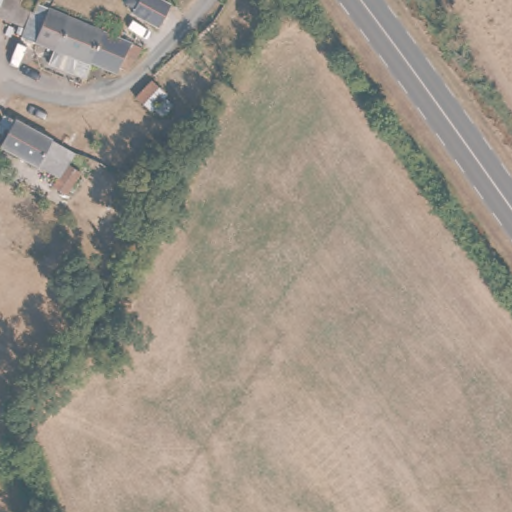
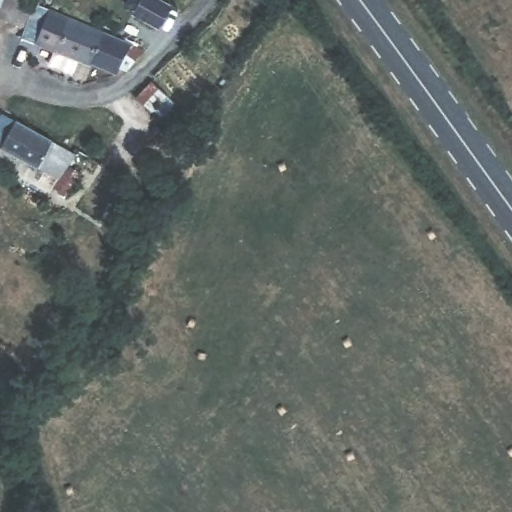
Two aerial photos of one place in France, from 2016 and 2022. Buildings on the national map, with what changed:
unchanged [(11,4),(21,10),(15,25),(0,20),(0,0),(13,0),(11,4)]
unchanged [(115,4),(117,0),(147,0),(160,7),(147,28),(121,13),(124,9),(115,4)]
unchanged [(62,69),(66,54),(27,44),(34,17),(38,18),(110,36),(140,43),(135,63),(121,60),(120,68),(102,64),(90,61),(86,75),(62,69)]
unchanged [(166,103),(164,106),(167,107),(170,109),(172,111),(173,114),(173,117),(172,118),(171,121),(169,123),(165,123),(163,123),(160,123),(157,120),(156,117),(155,115),(152,117),(136,103),(151,87),(166,103)]
unchanged [(45,175),(0,145),(0,135),(0,134),(0,110),(61,149),(45,175)]
unchanged [(61,169),(65,171),(75,178),(60,200),(45,190),(61,169)]

